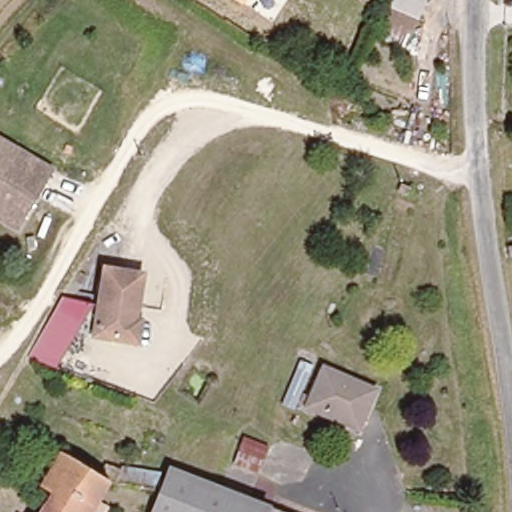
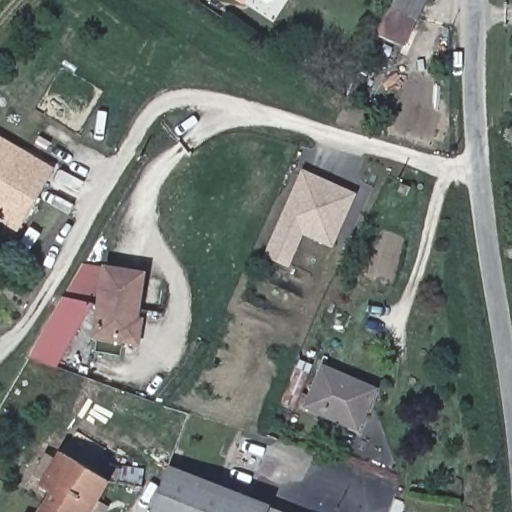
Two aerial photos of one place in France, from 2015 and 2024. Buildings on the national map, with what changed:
unchanged [(243,4),(237,0),(246,0),(243,4)]
unchanged [(412,14),(400,42),(373,30),(388,0),(417,0),(412,14)]
unchanged [(0,216),(0,136),(22,148),(52,166),(17,225),(0,216)]
new [(335,244),(328,238),(325,245),(302,235),(288,267),(262,255),(302,168),(357,193),(335,244)]
unchanged [(141,320),(149,320),(147,343),(100,336),(109,266),(147,270),(141,320)]
unchanged [(82,318),(58,358),(43,351),(67,310),(82,318)]
unchanged [(377,390),(361,431),(307,411),(322,368),(377,390)]
unchanged [(52,494),(42,488),(64,452),(105,478),(110,467),(122,469),(119,483),(109,482),(91,512),(54,512),(45,507),(52,494)]
unchanged [(182,475),(269,506),(267,512),(151,512),(167,470),(182,475)]
unchanged [(284,512),(267,512),(269,506),(284,512)]
unchanged [(54,512),(42,512),(45,507),(54,512)]

